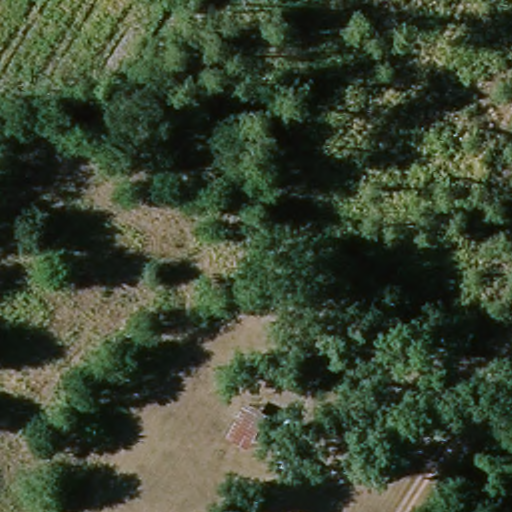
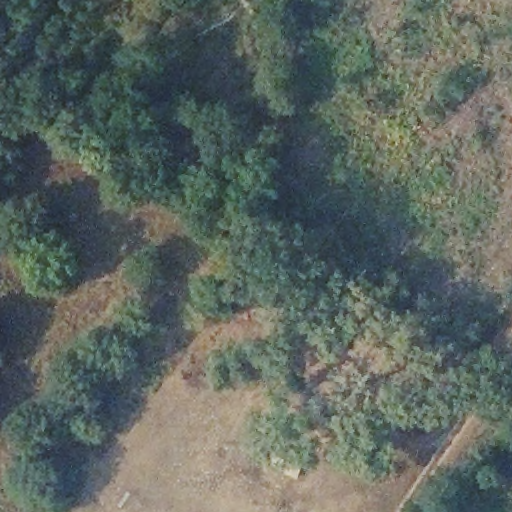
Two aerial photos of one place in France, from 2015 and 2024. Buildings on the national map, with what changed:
unchanged [(297,481),(267,458),(282,452),(308,467),(297,481)]

